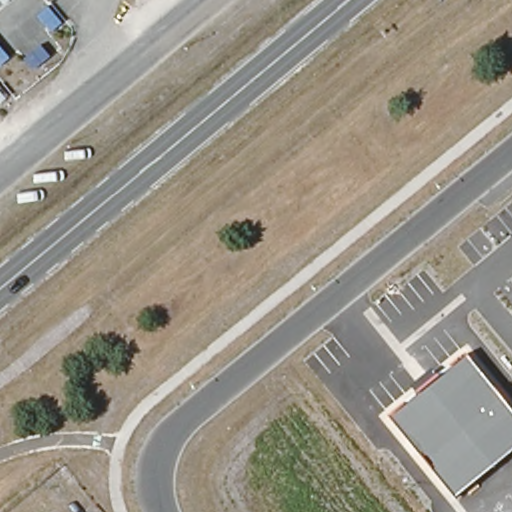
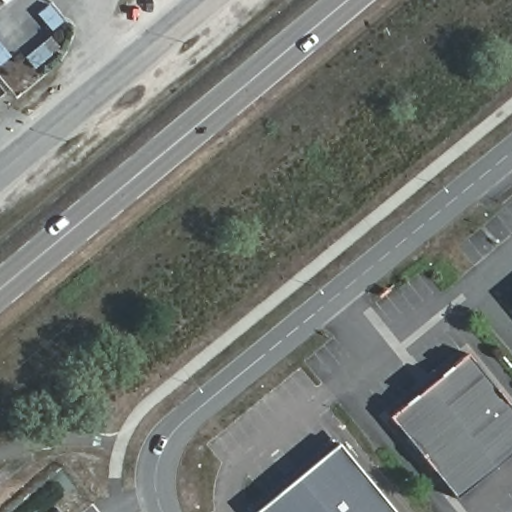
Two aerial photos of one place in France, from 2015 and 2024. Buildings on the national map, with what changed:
unchanged [(388,417),(420,392),(413,385),(432,370),(438,376),(467,352),(512,408),(512,453),(455,498),(388,417)]
new [(339,442),(396,512),(253,512),(339,442)]

